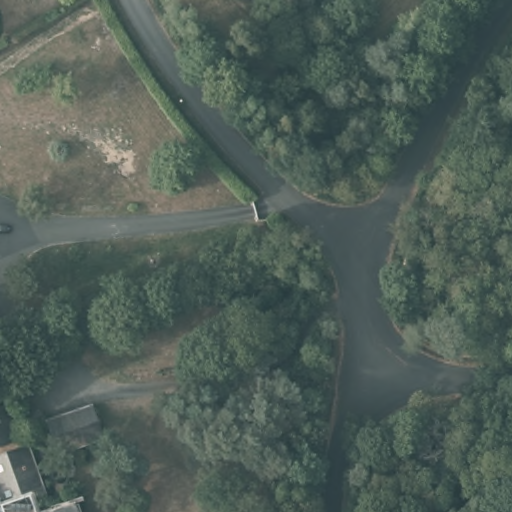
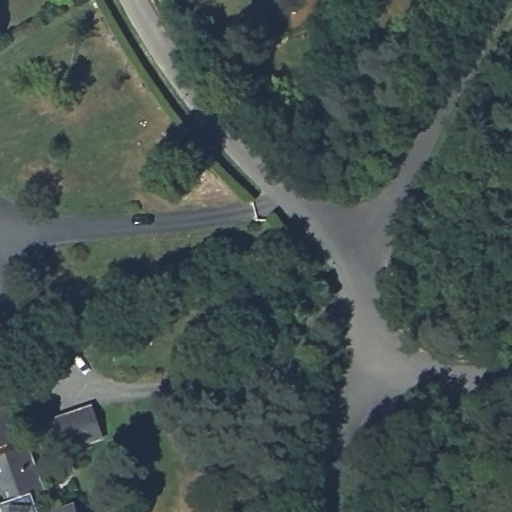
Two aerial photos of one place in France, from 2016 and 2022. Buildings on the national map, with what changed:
unchanged [(0,443),(0,410),(9,407),(20,437),(0,443)]
unchanged [(102,438),(61,453),(50,422),(91,407),(102,438)]
unchanged [(31,497),(36,512),(0,512),(0,458),(29,448),(44,493),(31,497)]
unchanged [(74,504),(76,512),(52,512),(74,504)]

